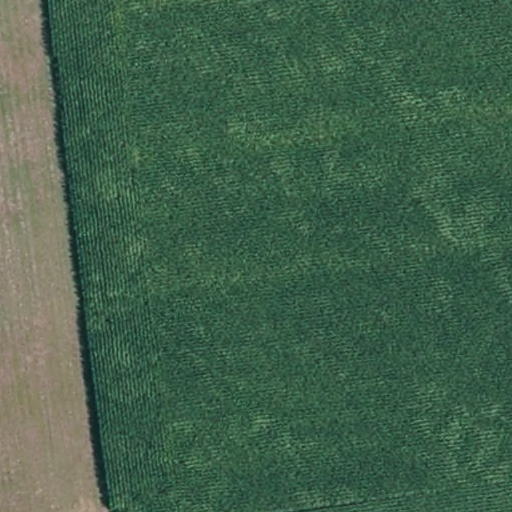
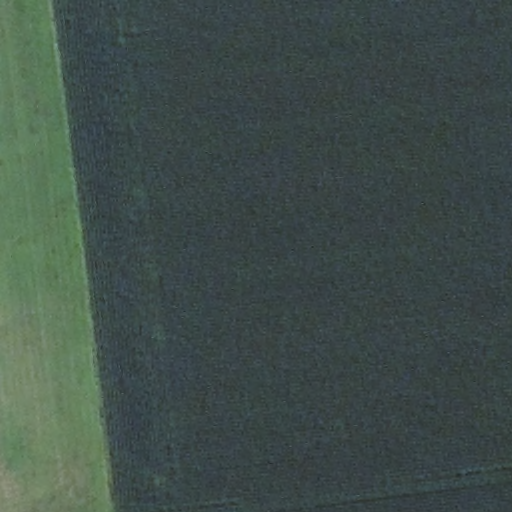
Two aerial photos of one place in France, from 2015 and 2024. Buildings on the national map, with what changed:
[]

